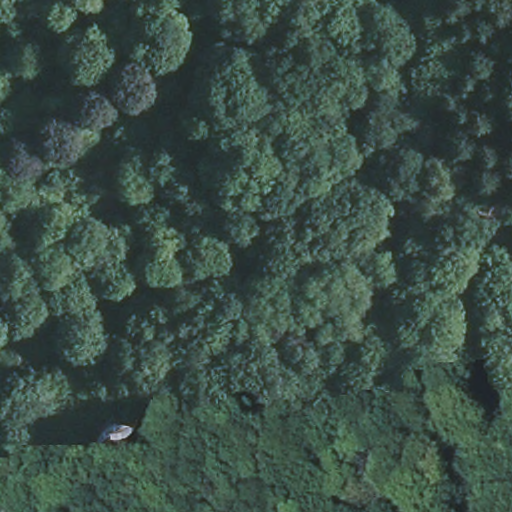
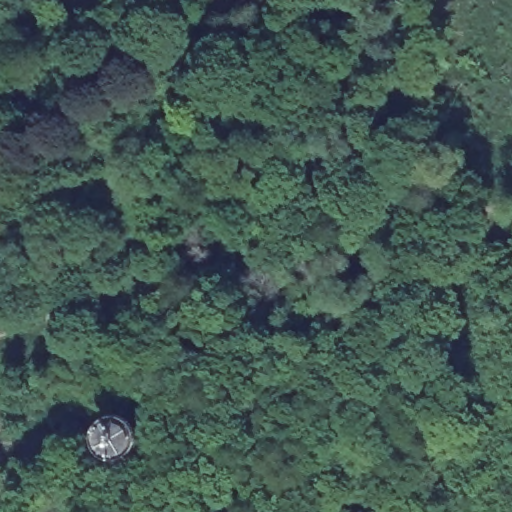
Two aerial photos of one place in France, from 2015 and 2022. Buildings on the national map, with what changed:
unchanged [(286,290),(375,267),(388,317),(300,340),(286,290)]

